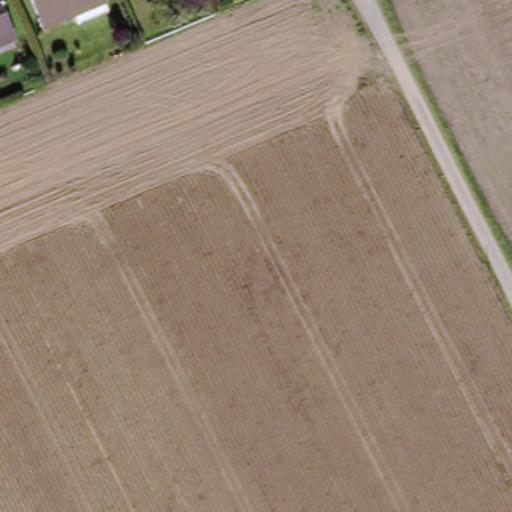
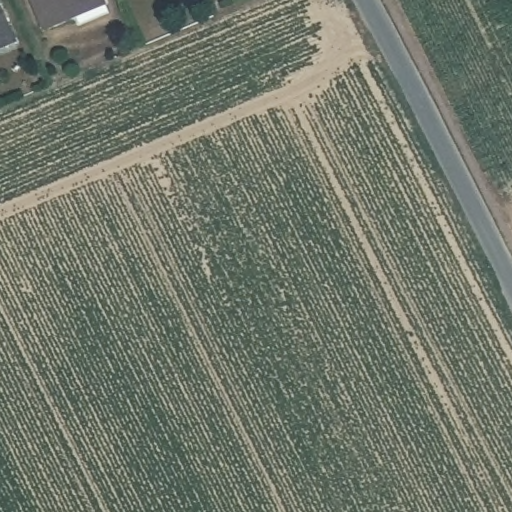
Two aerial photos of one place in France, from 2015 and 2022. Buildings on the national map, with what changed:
unchanged [(24,0),(99,0),(105,16),(41,42),(24,0)]
unchanged [(14,45),(0,51),(0,12),(14,45)]

